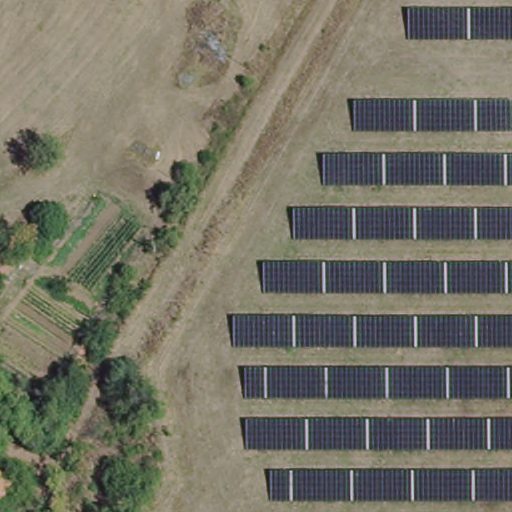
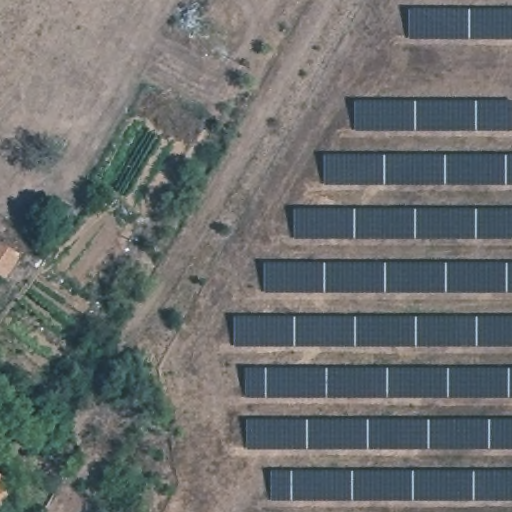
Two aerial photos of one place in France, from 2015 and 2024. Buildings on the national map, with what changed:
unchanged [(3,273),(0,272),(0,241),(16,250),(3,273)]
unchanged [(0,453),(14,461),(5,476),(16,482),(0,511),(0,453)]

